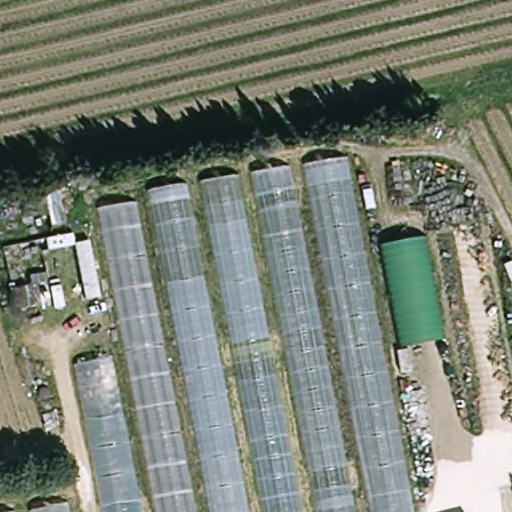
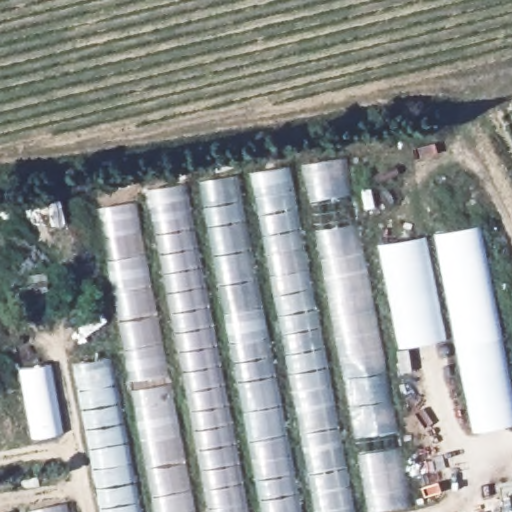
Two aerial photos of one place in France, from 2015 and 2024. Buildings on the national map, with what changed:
unchanged [(126,354),(102,201),(349,147),(421,512),(103,512),(76,359),(126,354)]
new [(512,388),(512,426),(474,434),(436,235),(481,226),(512,388)]
unchanged [(402,346),(383,245),(430,236),(450,338),(402,346)]
new [(20,371),(51,365),(63,434),(33,440),(20,371)]
unchanged [(68,512),(0,512),(66,500),(68,512)]

